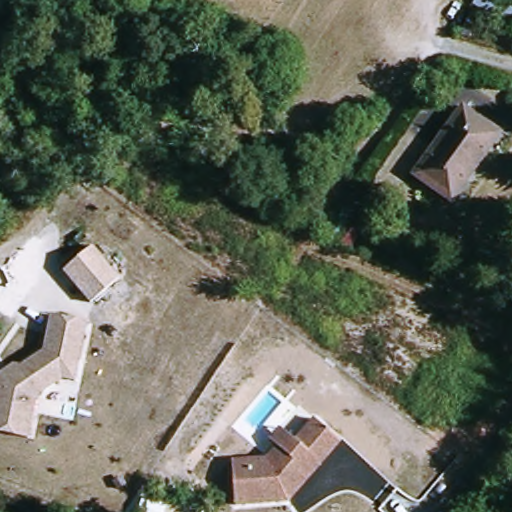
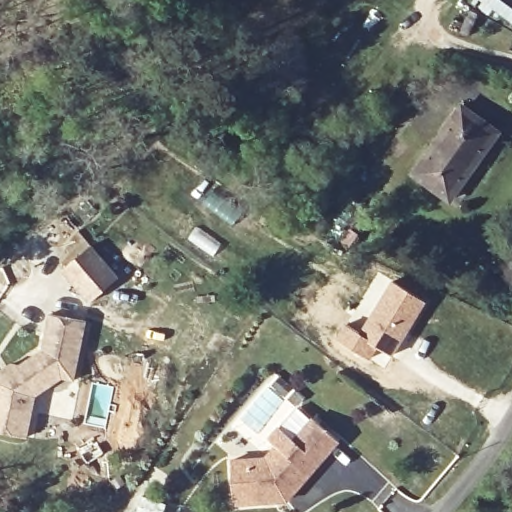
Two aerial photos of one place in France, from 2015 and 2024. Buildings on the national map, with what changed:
unchanged [(418,168),(463,105),(494,128),(450,191),(418,168)]
unchanged [(93,242),(120,275),(91,299),(64,265),(93,242)]
new [(425,301),(393,355),(377,345),(369,358),(335,339),(343,323),(358,332),(391,280),(425,301)]
unchanged [(86,324),(71,382),(35,396),(26,437),(0,431),(0,371),(13,363),(19,364),(40,350),(50,314),(86,324)]
unchanged [(233,504),(231,461),(266,459),(276,447),(270,440),(280,428),(295,442),(315,422),(340,446),(295,491),(284,502),(233,504)]

